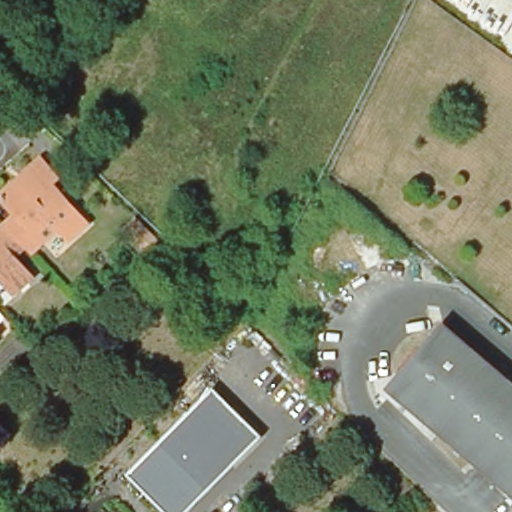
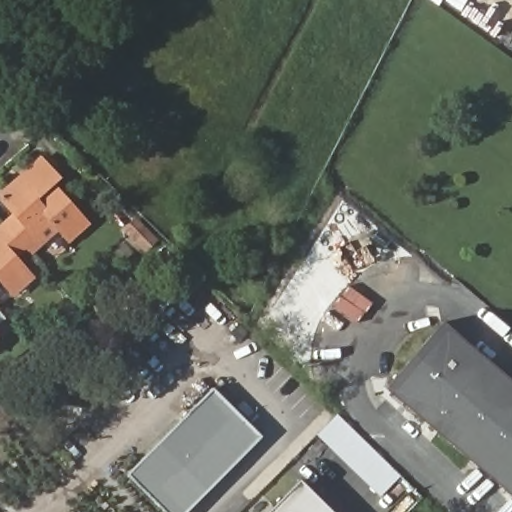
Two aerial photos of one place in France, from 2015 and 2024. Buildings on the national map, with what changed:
unchanged [(6,228),(17,218),(1,200),(17,185),(21,181),(40,163),(58,182),(51,187),(86,226),(69,242),(53,225),(35,241),(40,246),(30,255),(25,249),(6,228)]
unchanged [(161,243),(139,262),(111,232),(135,211),(161,243)]
unchanged [(13,261),(30,280),(13,294),(0,281),(0,233),(6,228),(25,249),(13,261)]
unchanged [(437,325),(512,389),(512,502),(382,391),(437,325)]
unchanged [(262,436),(188,512),(165,512),(129,475),(215,389),(262,436)]
new [(380,498),(317,435),(338,414),(401,476),(380,498)]
new [(337,512),(274,512),(306,480),(337,512)]

